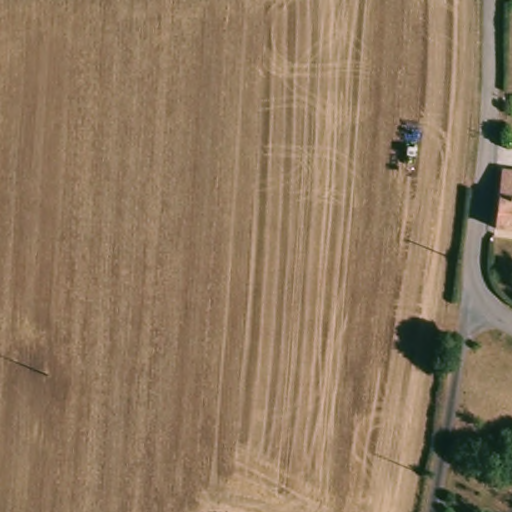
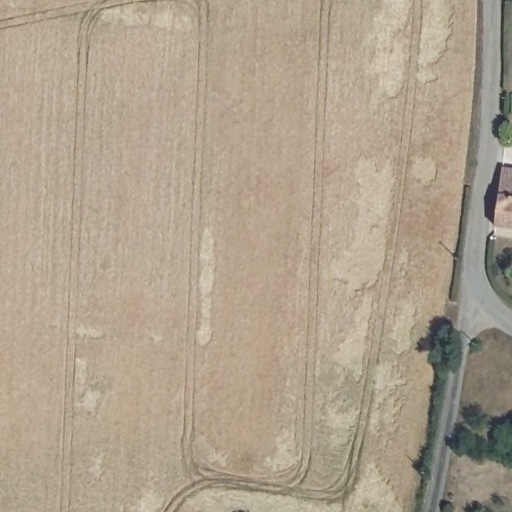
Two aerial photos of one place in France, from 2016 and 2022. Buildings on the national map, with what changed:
unchanged [(497,183),(498,177),(499,166),(512,168),(512,228),(492,225),(497,186),(497,183)]

